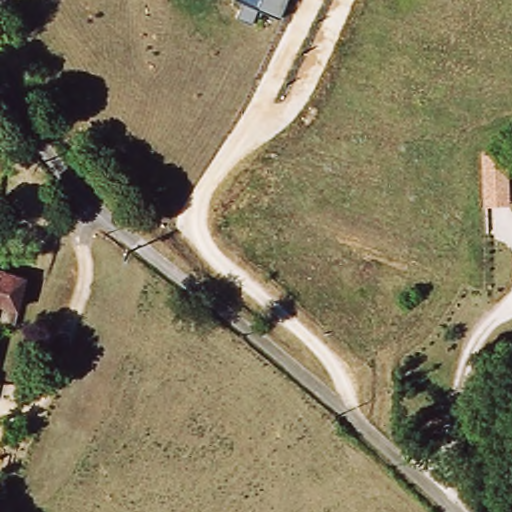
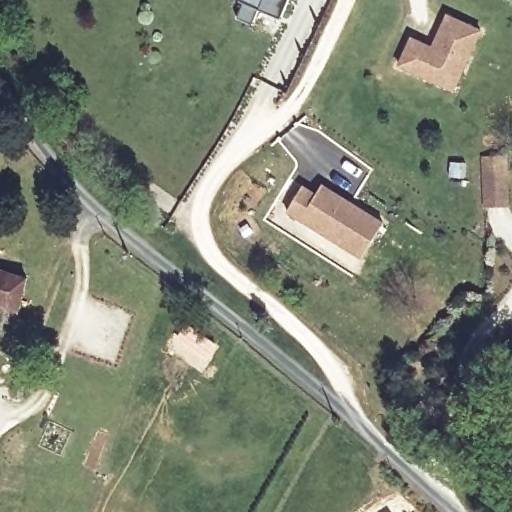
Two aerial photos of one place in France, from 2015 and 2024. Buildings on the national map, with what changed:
unchanged [(280,18),(260,10),(253,24),(237,17),(243,4),(235,0),(288,0),(280,18)]
new [(455,91),(398,66),(412,35),(432,44),(447,11),(483,29),(455,91)]
new [(510,206),(483,208),(481,155),(507,153),(510,206)]
new [(385,221),(362,259),(285,213),(304,183),(317,192),(322,183),(385,221)]
unchanged [(9,278),(30,282),(16,335),(1,333),(0,345),(0,265),(12,268),(9,278)]

